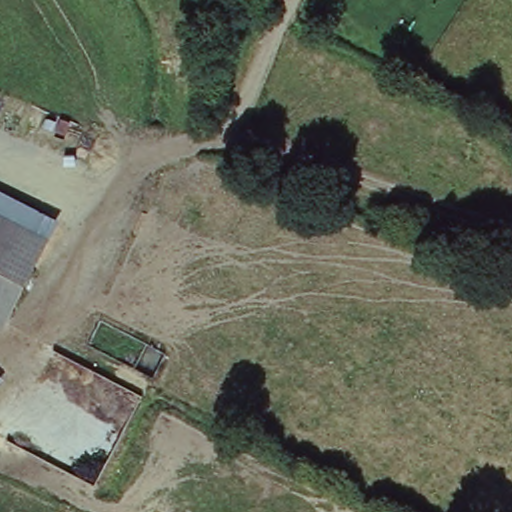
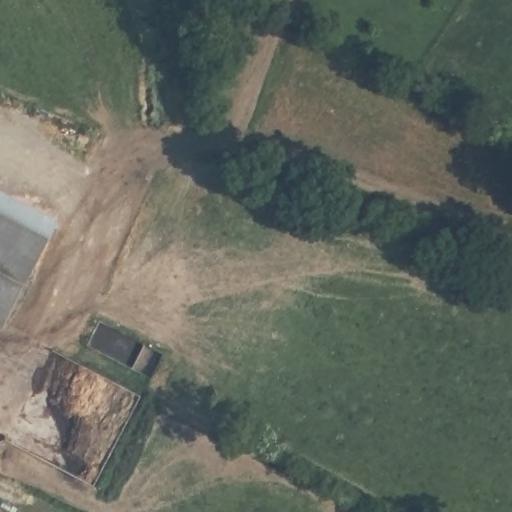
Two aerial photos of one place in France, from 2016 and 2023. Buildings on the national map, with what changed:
unchanged [(15,314),(6,333),(0,330),(0,198),(61,228),(15,314)]

